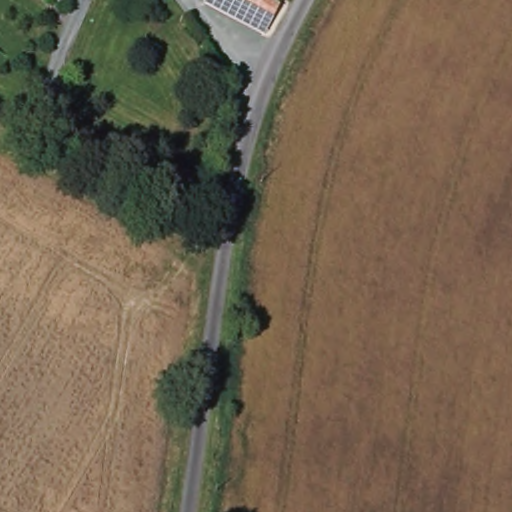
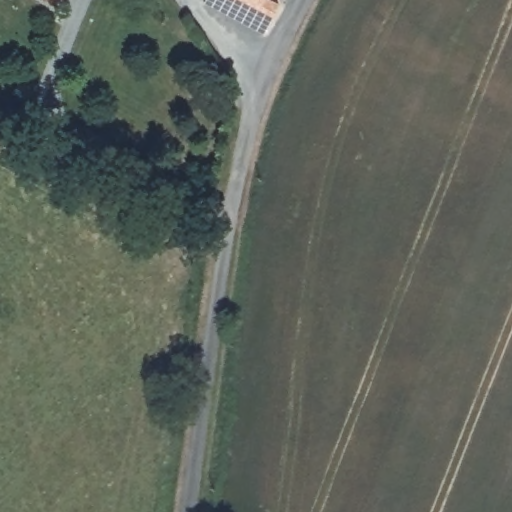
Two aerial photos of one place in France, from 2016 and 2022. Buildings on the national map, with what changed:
unchanged [(266,0),(261,10),(273,16),(264,37),(204,5),(206,0),(266,0)]

